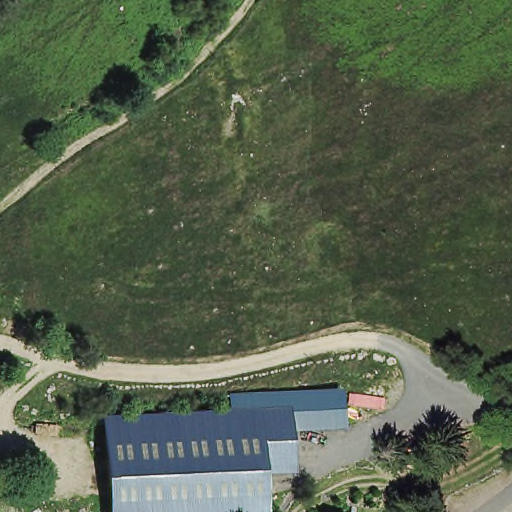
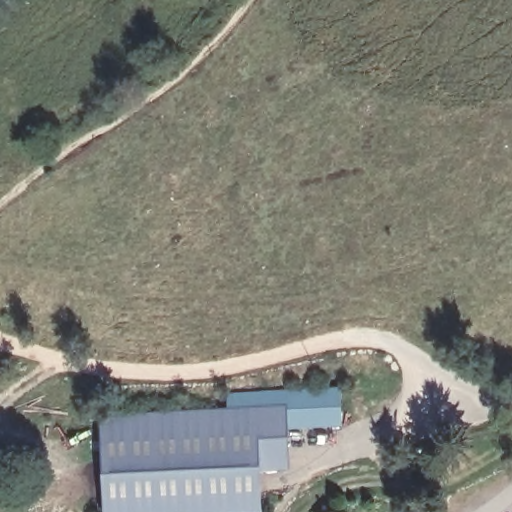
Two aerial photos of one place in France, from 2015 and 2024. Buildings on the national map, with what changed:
unchanged [(228,410),(227,393),(341,390),(344,427),(290,432),(292,472),(262,475),(264,512),(105,512),(102,415),(228,410)]

